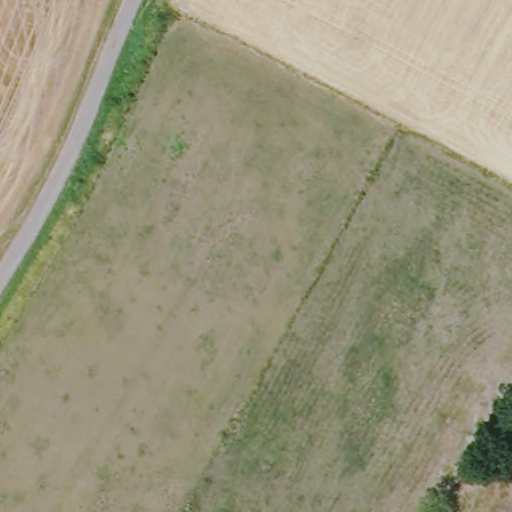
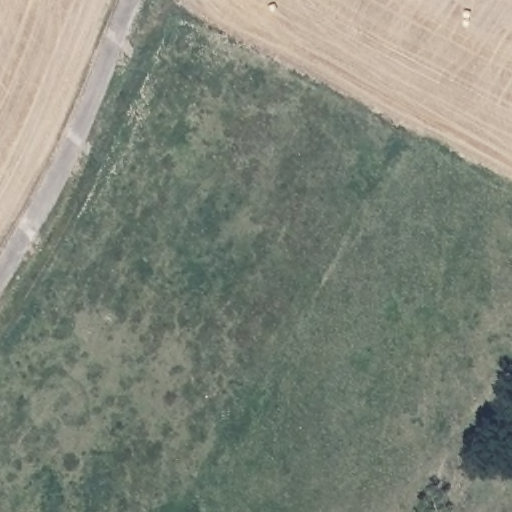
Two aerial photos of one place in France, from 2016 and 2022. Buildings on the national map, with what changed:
[]

